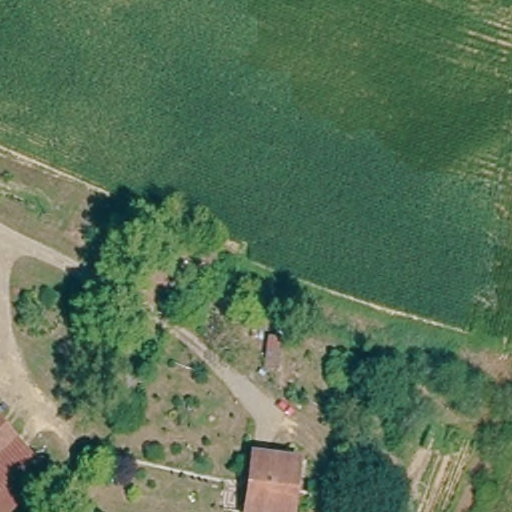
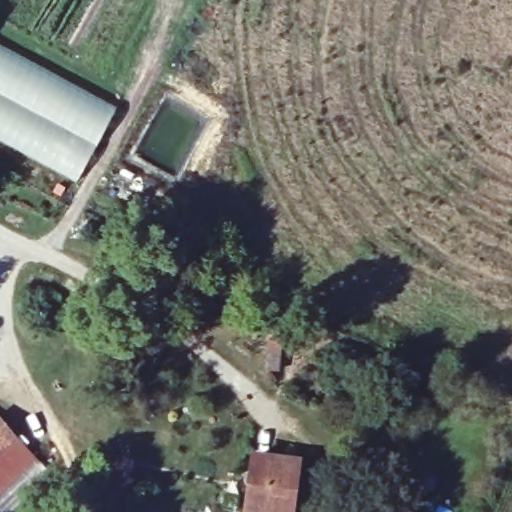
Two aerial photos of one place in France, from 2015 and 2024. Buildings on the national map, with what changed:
new [(76,182),(0,142),(0,43),(117,106),(76,182)]
unchanged [(13,442),(0,456),(0,427),(15,440),(13,442)]
unchanged [(0,456),(13,442),(50,477),(16,512),(0,512),(0,456)]
unchanged [(292,465),(298,465),(294,499),(293,502),(292,512),(245,512),(250,473),(251,460),(292,465)]

